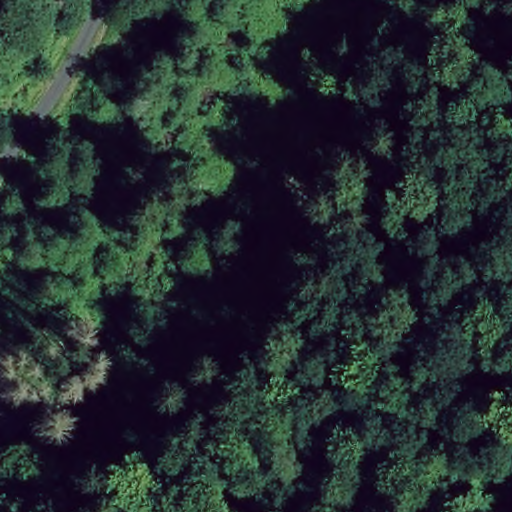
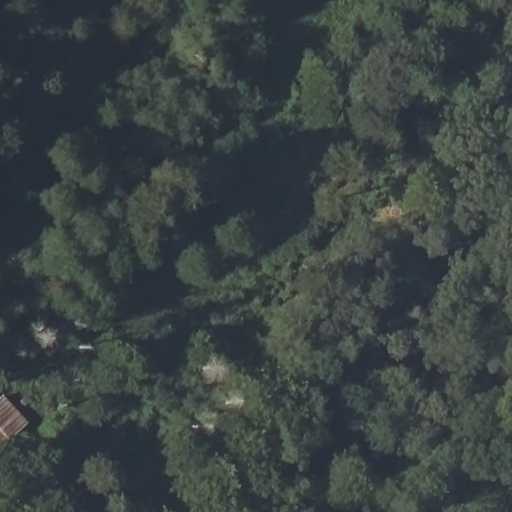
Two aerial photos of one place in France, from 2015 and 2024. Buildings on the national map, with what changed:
demolished [(0,440),(0,399),(0,398),(25,427),(5,446),(0,440)]
new [(18,425),(5,438),(0,432),(0,406),(18,425)]

